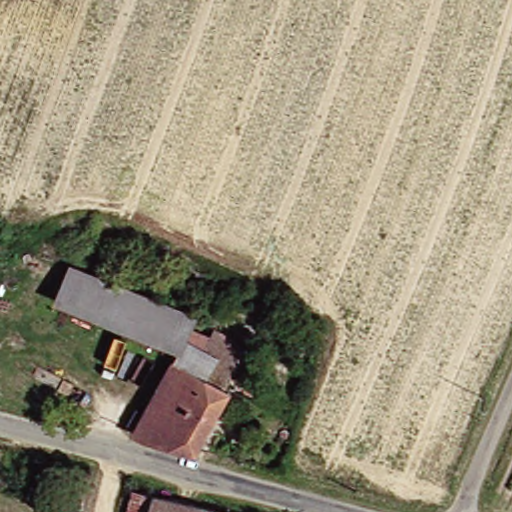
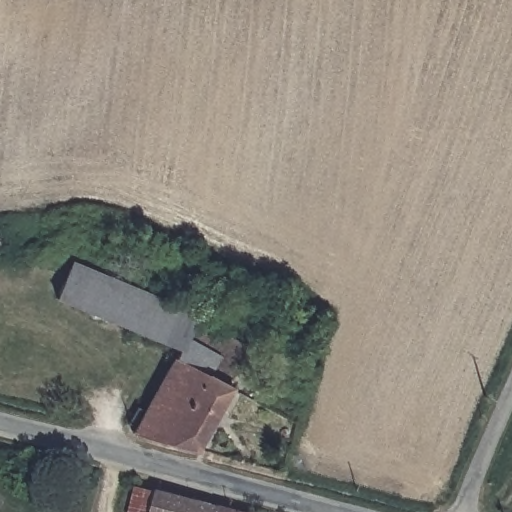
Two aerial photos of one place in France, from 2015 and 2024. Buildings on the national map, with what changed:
unchanged [(146,333),(63,297),(77,262),(157,294),(146,333)]
unchanged [(146,333),(157,294),(202,312),(194,329),(211,337),(215,331),(231,340),(249,348),(239,366),(230,384),(227,389),(230,390),(199,448),(139,427),(140,423),(130,418),(140,402),(149,407),(181,349),(146,333)]
unchanged [(143,491),(157,494),(219,510),(218,512),(138,512),(143,491)]
unchanged [(227,512),(218,512),(219,510),(227,512)]

